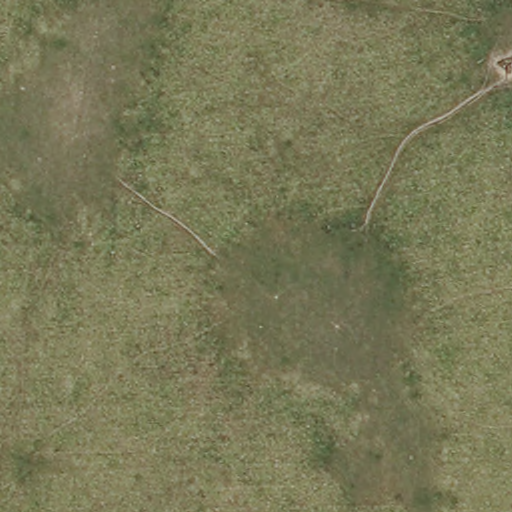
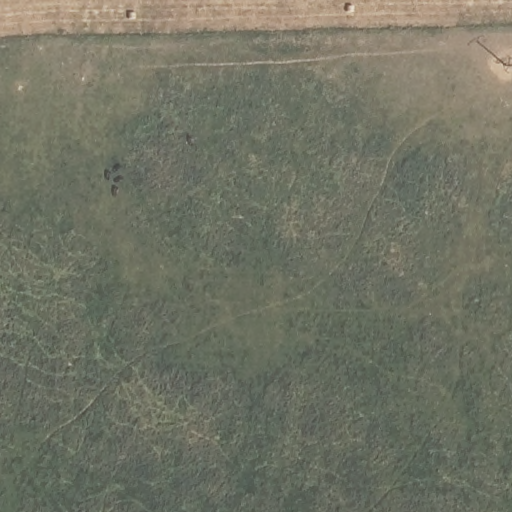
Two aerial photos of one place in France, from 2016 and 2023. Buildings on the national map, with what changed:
[]

